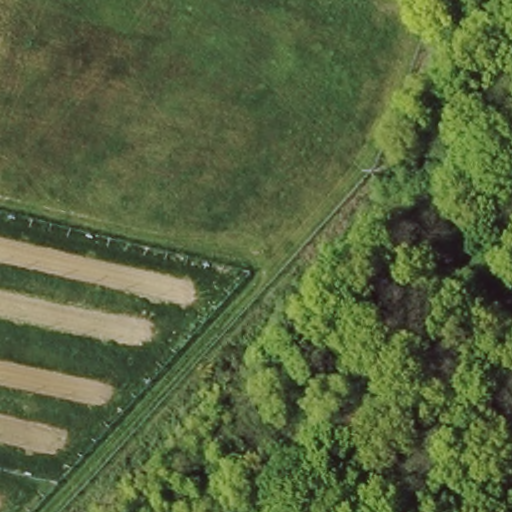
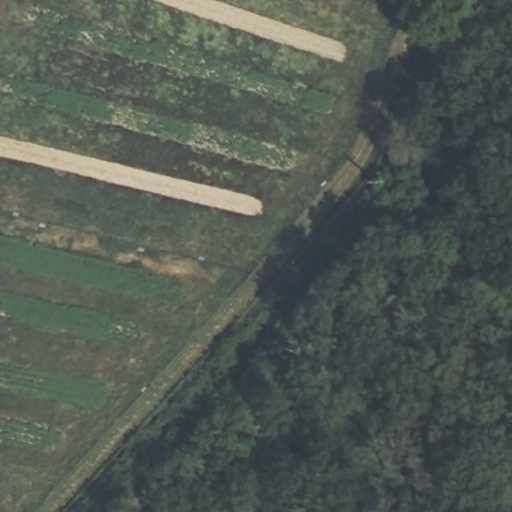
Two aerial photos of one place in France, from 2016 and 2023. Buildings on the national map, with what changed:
[]

